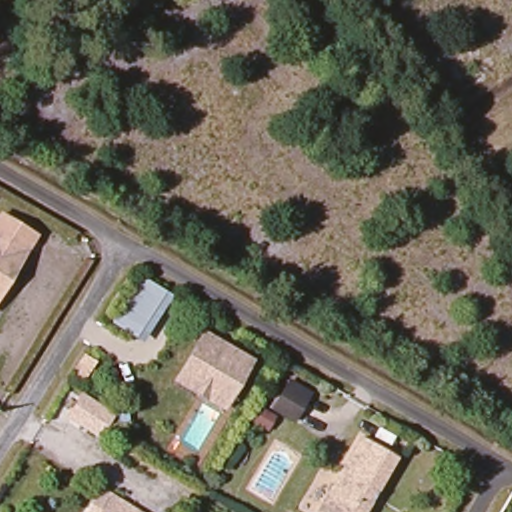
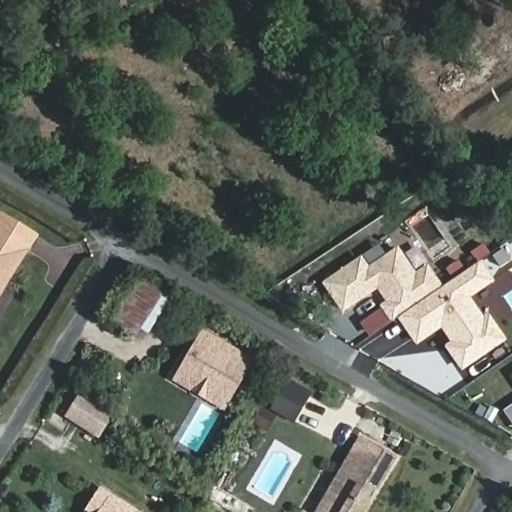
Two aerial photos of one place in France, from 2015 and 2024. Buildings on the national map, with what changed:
unchanged [(7,278),(1,276),(0,277),(0,235),(25,251),(7,278)]
new [(365,257),(372,267),(401,247),(420,273),(431,265),(445,286),(397,318),(386,303),(393,300),(382,284),(347,308),(329,282),(365,257)]
new [(440,329),(416,346),(397,318),(445,286),(480,261),(494,282),(471,298),(485,320),(490,316),(507,341),(462,372),(445,346),(450,342),(440,329)]
unchanged [(140,335),(118,321),(145,278),(167,293),(140,335)]
unchanged [(167,384),(175,371),(197,333),(212,342),(220,347),(244,361),(222,399),(215,412),(167,384)]
unchanged [(81,382),(73,377),(84,360),(93,365),(81,382)]
new [(511,376),(512,375),(512,376),(511,376)]
unchanged [(298,393),(283,420),(263,407),(278,382),(298,393)]
unchanged [(105,415),(92,434),(62,415),(75,396),(105,415)]
new [(504,412),(512,406),(512,423),(504,412)]
unchanged [(391,457),(370,492),(366,489),(361,497),(365,500),(359,512),(312,512),(356,437),(391,457)]
unchanged [(126,512),(99,512),(106,500),(126,512)]

